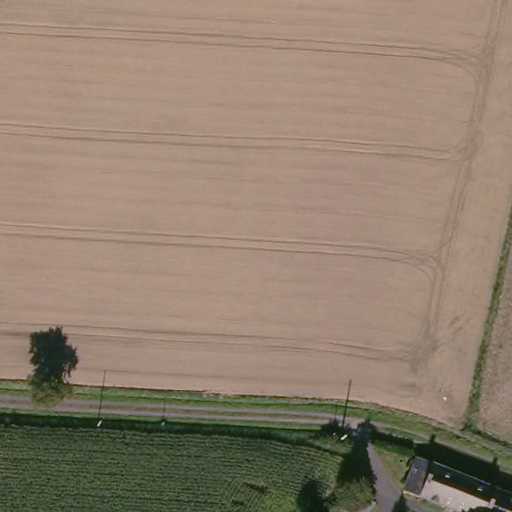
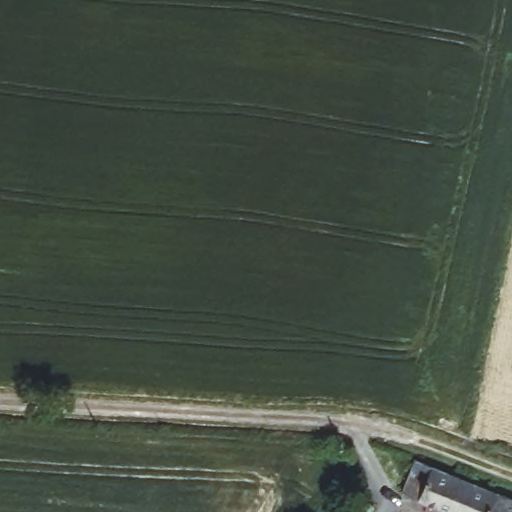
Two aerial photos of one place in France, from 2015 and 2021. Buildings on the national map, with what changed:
unchanged [(403,493),(417,459),(462,477),(452,512),(449,512),(403,493)]
unchanged [(462,477),(512,498),(512,512),(452,512),(462,477)]
unchanged [(372,505),(367,512),(344,512),(343,511),(358,493),(372,505)]

